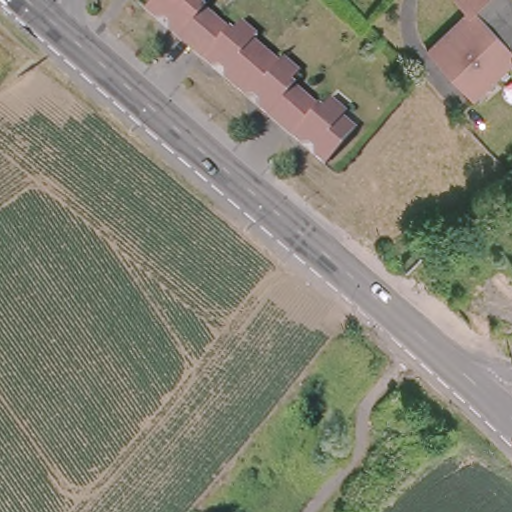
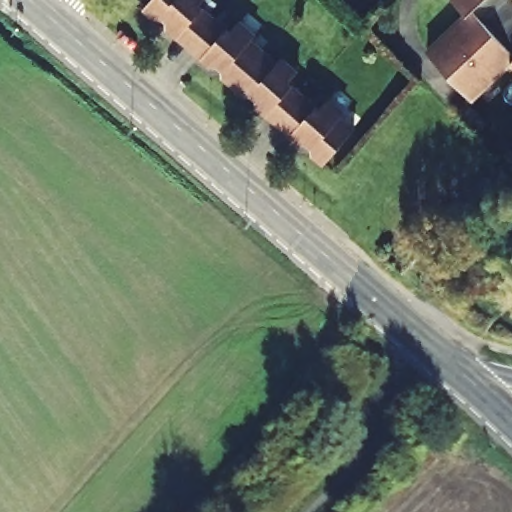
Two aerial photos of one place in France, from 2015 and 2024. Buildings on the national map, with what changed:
unchanged [(165,20),(158,15),(153,17),(140,5),(145,0),(198,0),(195,5),(210,17),(186,45),(165,27),(165,20)]
unchanged [(431,46),(451,28),(472,9),(464,0),(483,0),(506,0),(512,0),(512,61),(476,95),(466,84),(454,70),(447,64),(431,46)]
unchanged [(220,75),(220,69),(214,63),(208,65),(186,45),(210,17),(226,32),(235,22),(250,35),(247,39),(261,50),(231,85),(220,75)]
unchanged [(255,106),(254,99),(248,94),(243,95),(231,85),(261,50),(275,63),(278,60),(293,74),(285,84),(300,97),(276,125),(255,106)]
unchanged [(315,110),(323,100),(340,114),(337,117),(350,129),(321,164),(310,155),(310,148),(303,141),(297,143),(276,125),(300,97),(315,110)]

